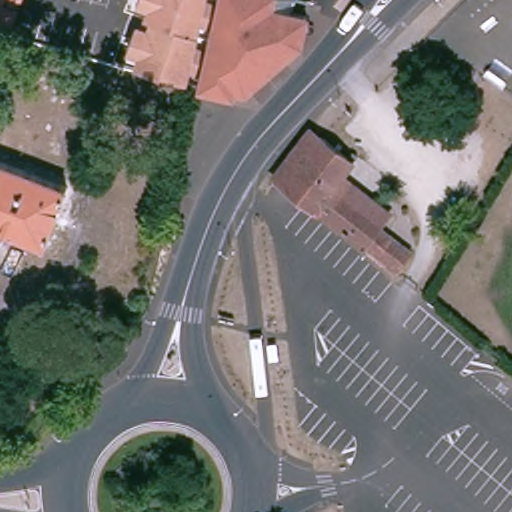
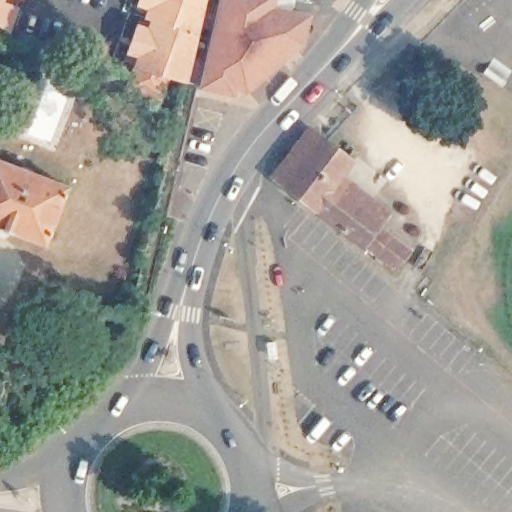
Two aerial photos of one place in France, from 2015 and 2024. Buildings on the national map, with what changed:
unchanged [(0,23),(0,0),(17,0),(7,27),(0,23)]
unchanged [(141,26),(153,30),(156,20),(150,18),(154,6),(142,2),(143,0),(205,0),(218,4),(214,24),(201,20),(195,48),(208,52),(205,65),(203,72),(191,69),(187,83),(140,68),(145,51),(134,47),(141,26)]
unchanged [(296,13),(310,17),(303,44),(250,92),(239,88),(236,94),(200,86),(203,72),(205,65),(208,52),(214,24),(218,4),(219,0),(299,0),(296,13)]
unchanged [(355,146),(360,150),(344,171),(355,180),(390,208),(378,222),(409,247),(393,266),(337,220),(284,180),(276,172),(311,125),(320,132),(349,153),(355,146)]
unchanged [(68,181),(46,240),(0,223),(0,155),(68,181)]

